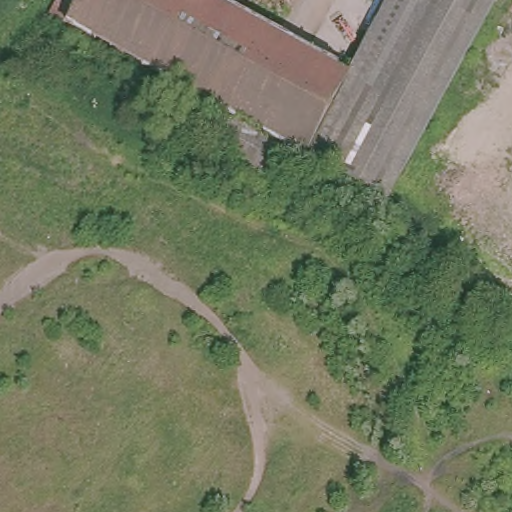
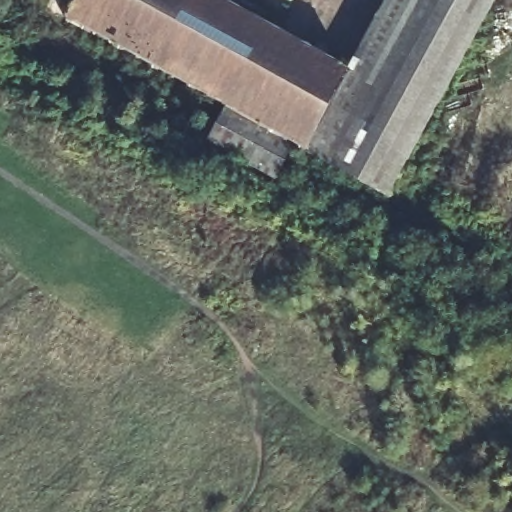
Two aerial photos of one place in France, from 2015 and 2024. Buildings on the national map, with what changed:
unchanged [(43,4),(46,0),(70,0),(62,14),(43,4)]
unchanged [(333,60),(346,67),(382,0),(497,0),(390,199),(295,151),(272,183),(267,180),(205,144),(222,114),(60,24),(73,0),(227,0),(333,60)]

